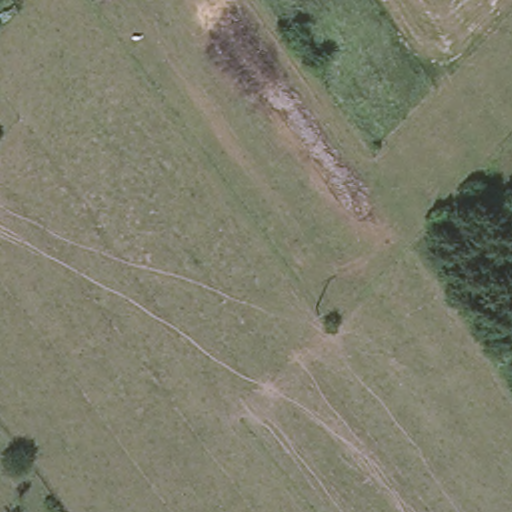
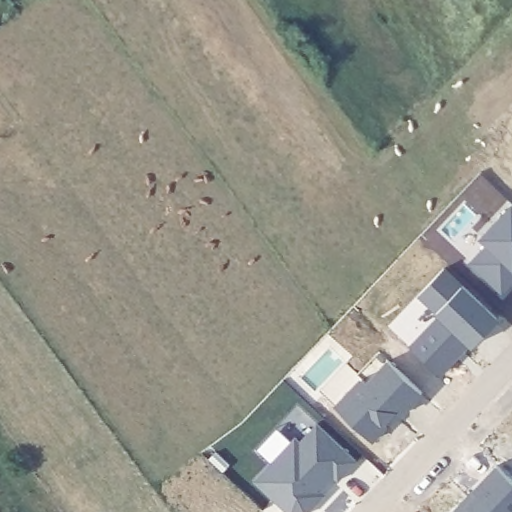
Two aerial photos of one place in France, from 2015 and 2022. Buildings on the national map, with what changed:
new [(512,280),(501,293),(465,261),(484,245),(478,233),(510,200),(512,202),(512,280)]
new [(427,328),(406,310),(440,272),(494,319),(445,376),(412,349),(427,328)]
new [(388,358),(421,391),(399,420),(391,412),(363,438),(341,406),(388,358)]
new [(313,419),(362,468),(305,512),(287,512),(253,476),(313,419)]
new [(512,479),(512,512),(464,512),(504,470),(512,479)]

